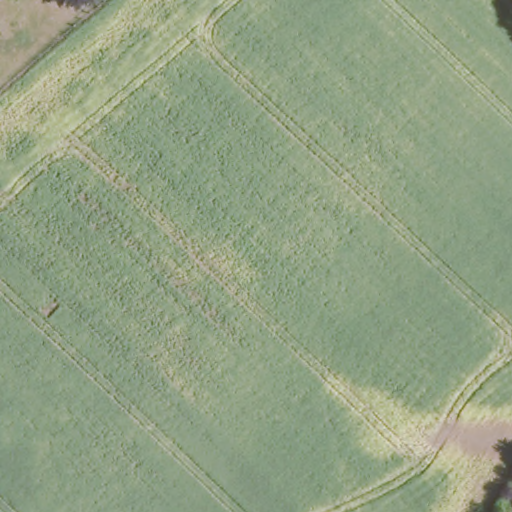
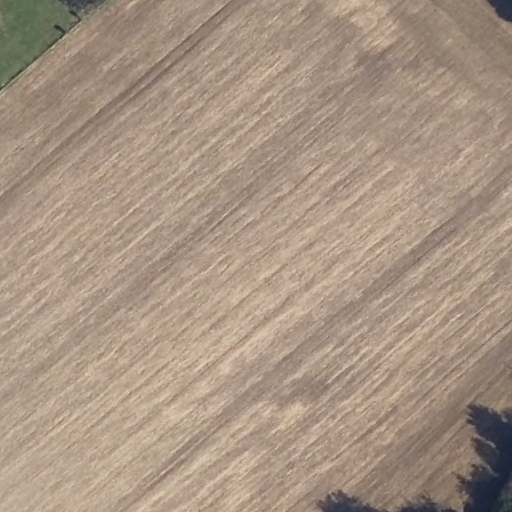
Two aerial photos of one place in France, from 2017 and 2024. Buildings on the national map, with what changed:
unchanged [(512,501),(512,503),(511,501),(512,501)]

